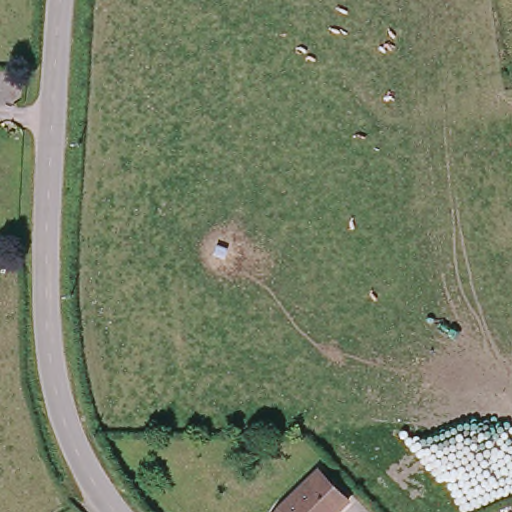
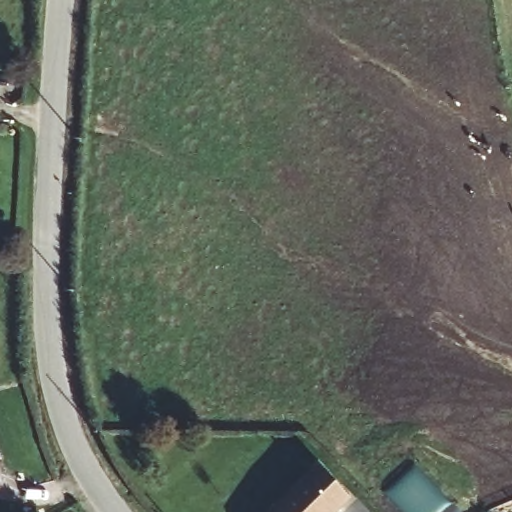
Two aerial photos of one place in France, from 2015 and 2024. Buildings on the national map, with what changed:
unchanged [(350,504),(339,512),(268,512),(280,498),(324,466),(350,504)]

